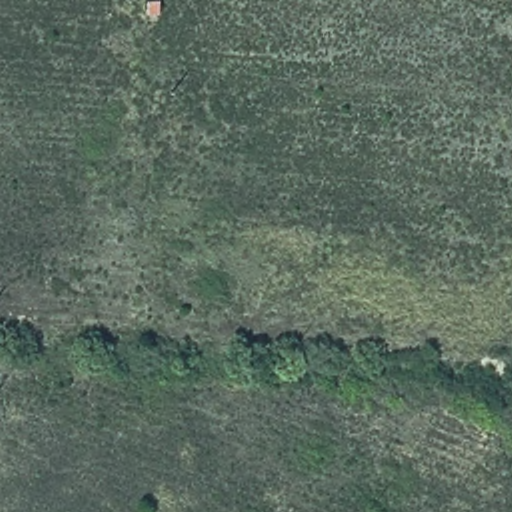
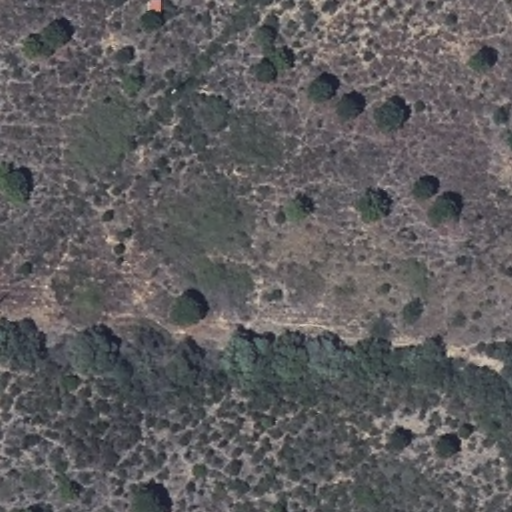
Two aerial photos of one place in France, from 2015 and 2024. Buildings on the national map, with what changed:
unchanged [(158,2),(158,21),(145,21),(146,2),(158,2)]

